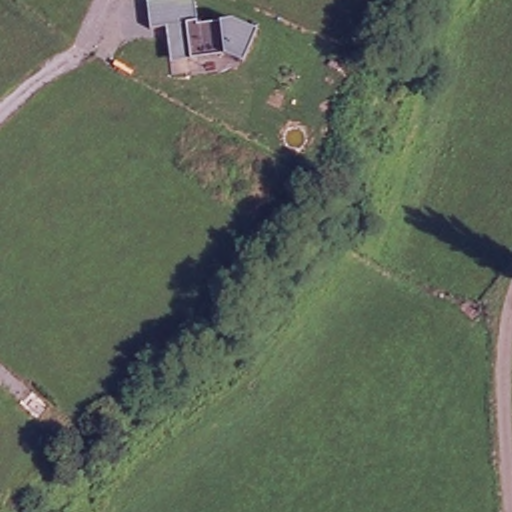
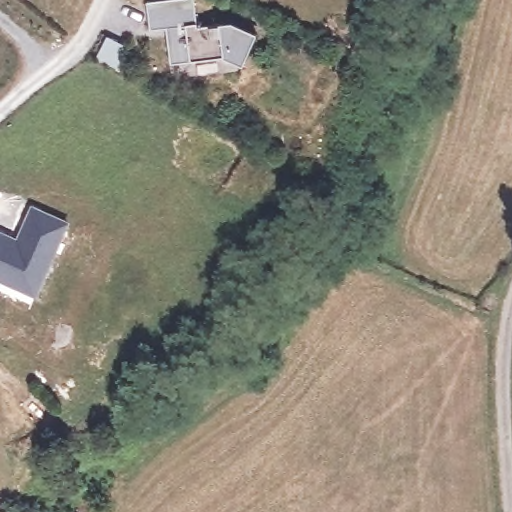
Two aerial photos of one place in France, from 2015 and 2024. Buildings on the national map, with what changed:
unchanged [(158,0),(194,0),(197,27),(228,22),(257,35),(242,67),(218,59),(220,77),(199,80),(196,62),(168,64),(163,30),(149,32),(144,1),(158,0)]
new [(106,40),(124,49),(116,62),(131,69),(127,76),(96,60),(106,40)]
new [(31,204),(70,221),(35,297),(0,282),(0,229),(15,236),(31,204)]

